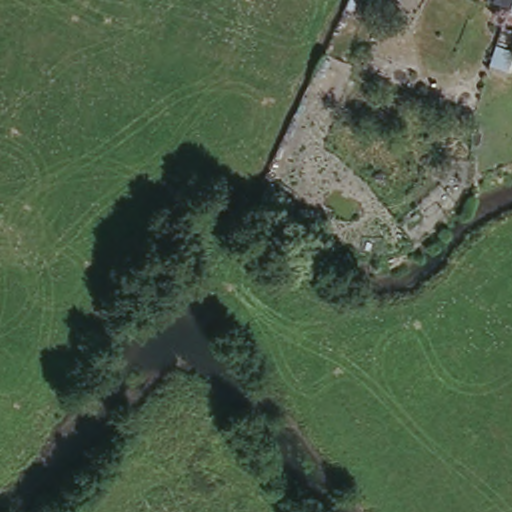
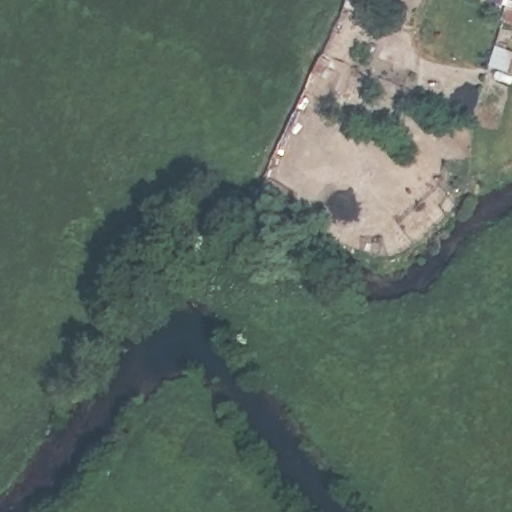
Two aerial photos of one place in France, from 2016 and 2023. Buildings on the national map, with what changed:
unchanged [(504,3),(505,0),(512,0),(512,7),(504,3)]

